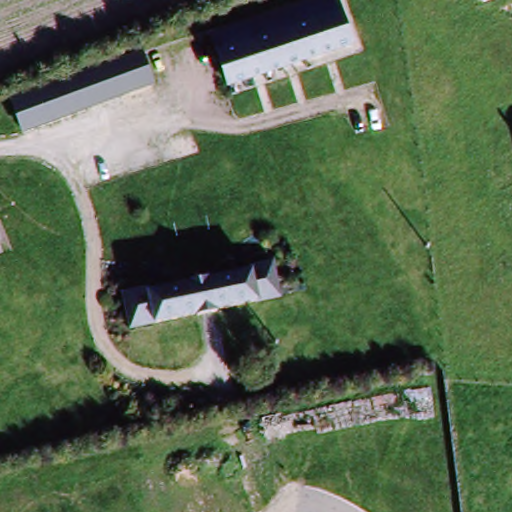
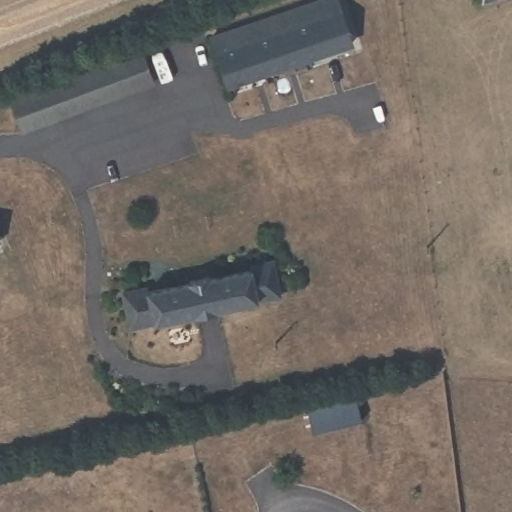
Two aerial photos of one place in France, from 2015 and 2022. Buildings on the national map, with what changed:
unchanged [(271,38),(264,19),(327,0),(330,0),(336,17),(271,38)]
unchanged [(479,2),(479,0),(484,0),(479,2)]
unchanged [(346,49),(221,87),(211,57),(271,38),(336,17),(346,49)]
unchanged [(143,53),(156,87),(25,139),(13,103),(143,53)]
unchanged [(0,243),(0,238),(2,242),(0,243)]
unchanged [(223,275),(226,280),(269,271),(274,298),(237,305),(238,311),(211,317),(208,311),(129,327),(121,291),(203,278),(223,275)]

